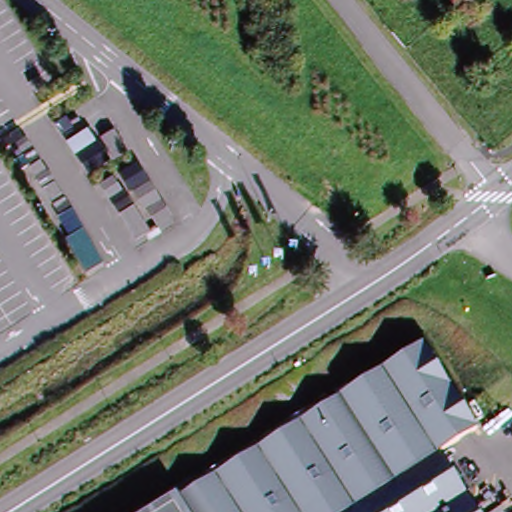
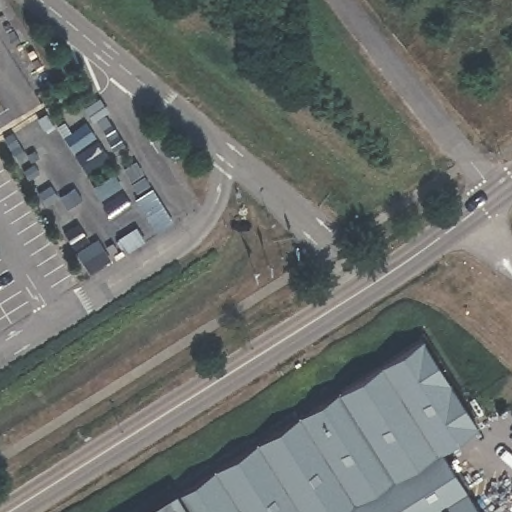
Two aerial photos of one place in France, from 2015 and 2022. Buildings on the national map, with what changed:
unchanged [(482,427),(444,451),(482,512),(150,512),(429,337),(482,427)]

